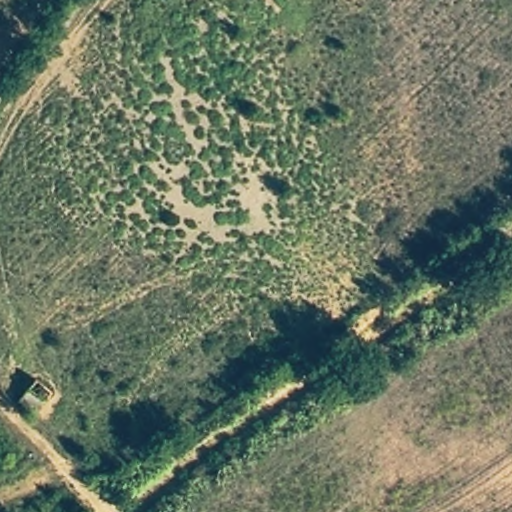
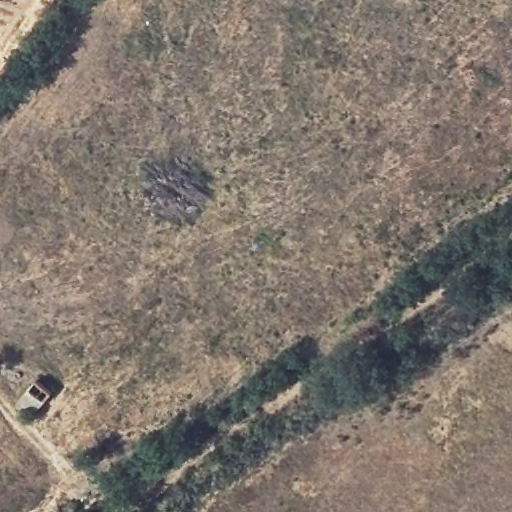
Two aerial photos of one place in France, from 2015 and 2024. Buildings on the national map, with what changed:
unchanged [(13,401),(37,378),(49,395),(30,416),(13,401)]

